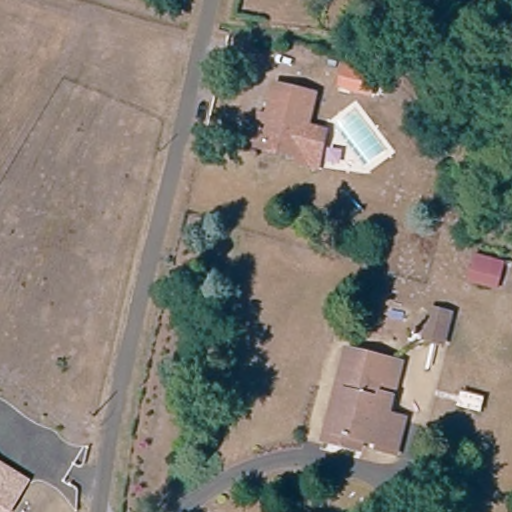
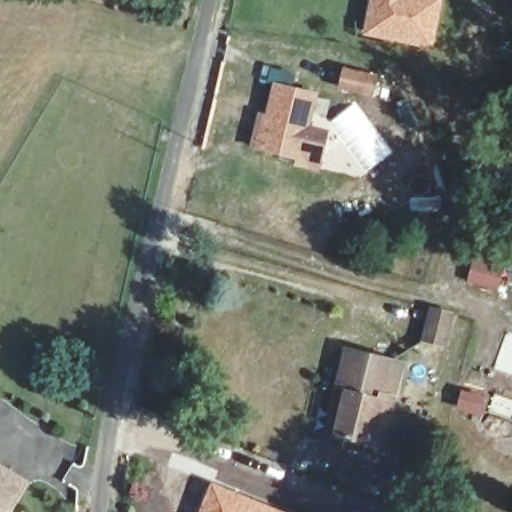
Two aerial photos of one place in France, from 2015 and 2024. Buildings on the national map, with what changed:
new [(365,36),(371,0),(442,0),(433,47),(365,36)]
unchanged [(378,76),(373,98),(345,92),(348,70),(378,76)]
unchanged [(316,164),(302,161),(265,152),(257,151),(262,126),(270,127),(278,93),(315,101),(307,137),(321,141),(316,164)]
unchanged [(505,246),(498,269),(467,261),(473,237),(505,246)]
unchanged [(443,313),(435,338),(413,333),(421,306),(443,313)]
unchanged [(332,446),(323,443),(327,427),(338,388),(347,352),(405,367),(392,413),(410,421),(400,457),(381,454),(380,446),(363,442),(357,453),(332,446)]
unchanged [(30,480),(11,512),(0,512),(0,461),(30,480)]
new [(210,480),(292,512),(196,512),(210,480)]

